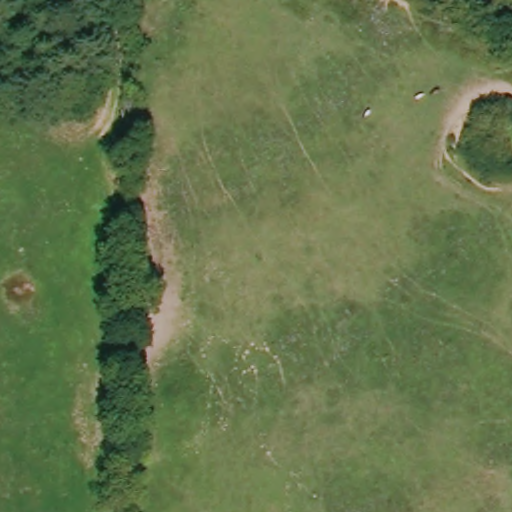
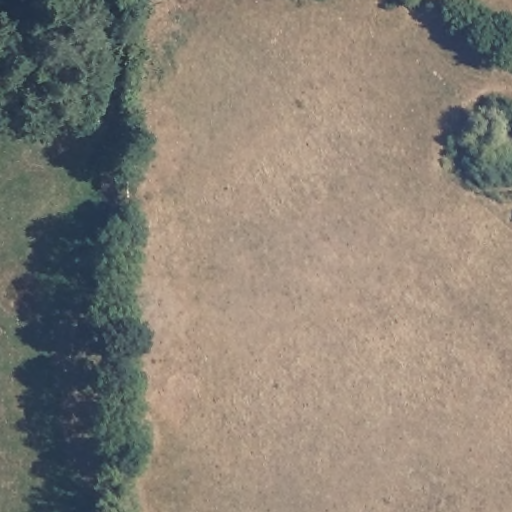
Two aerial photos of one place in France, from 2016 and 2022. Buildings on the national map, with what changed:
[]

